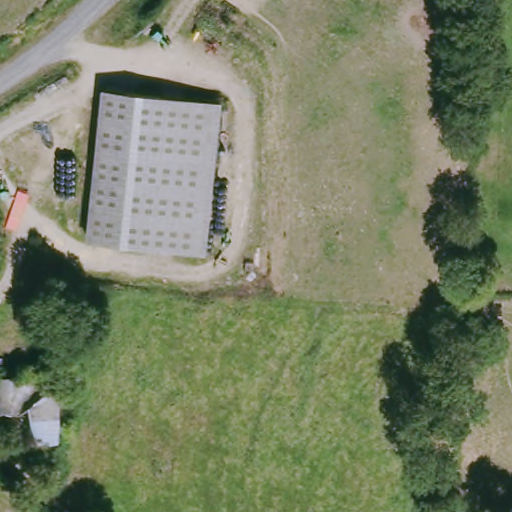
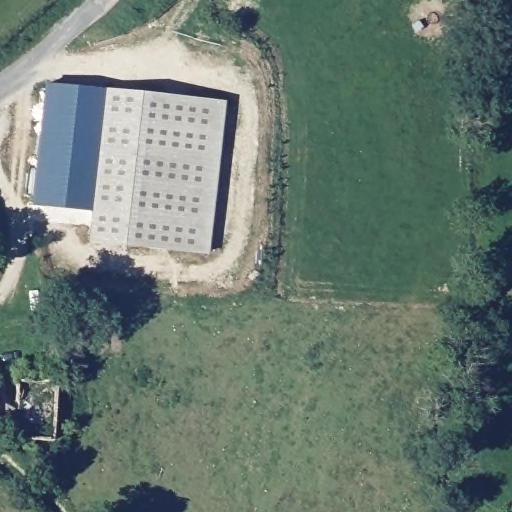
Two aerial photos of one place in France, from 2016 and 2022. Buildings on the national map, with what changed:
new [(32,205),(45,83),(105,90),(92,211),(32,205)]
unchanged [(105,90),(223,103),(207,255),(89,243),(105,90)]
unchanged [(57,439),(19,437),(18,418),(0,418),(0,381),(60,379),(57,439)]

